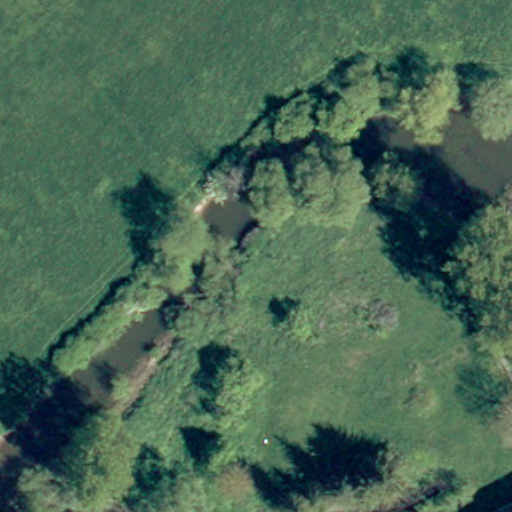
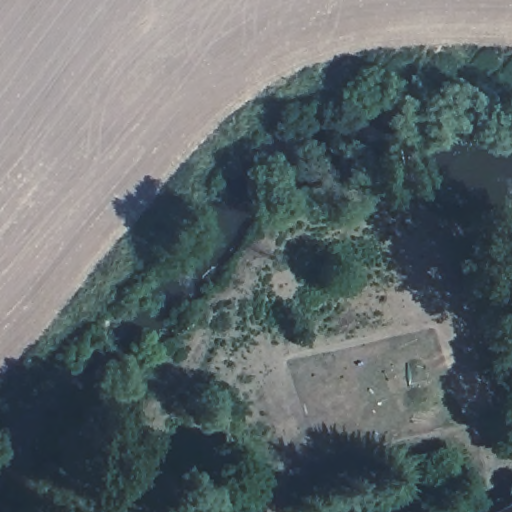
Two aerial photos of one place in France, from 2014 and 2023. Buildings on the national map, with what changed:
unchanged [(512,512),(497,512),(512,505),(512,512)]

